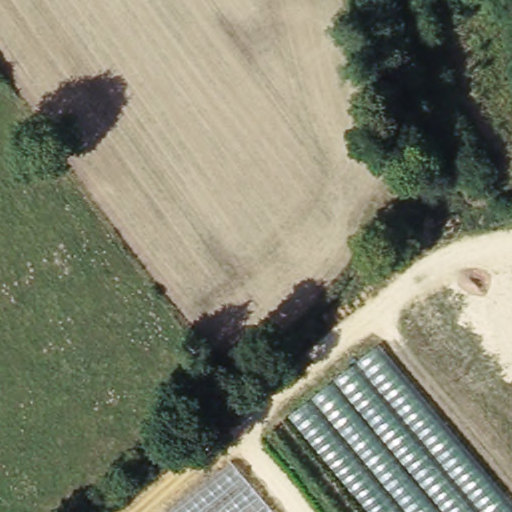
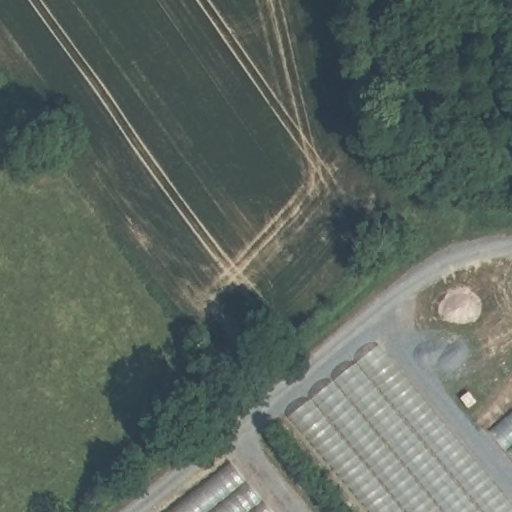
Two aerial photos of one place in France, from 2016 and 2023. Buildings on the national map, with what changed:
new [(512,409),(512,459),(488,430),(512,409)]
unchanged [(274,512),(169,512),(232,462),(274,512)]

